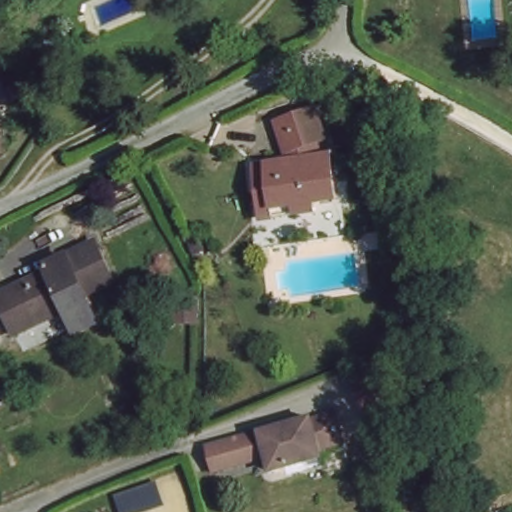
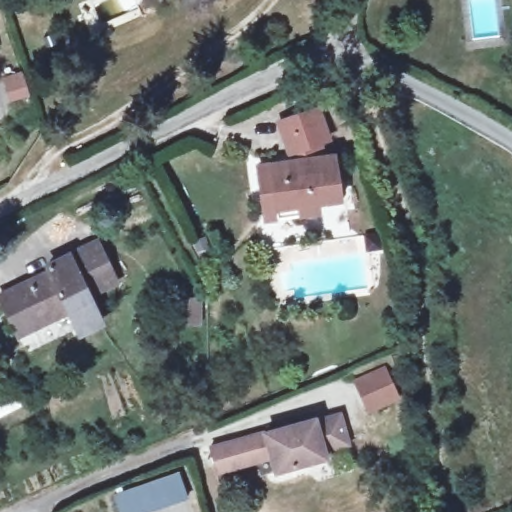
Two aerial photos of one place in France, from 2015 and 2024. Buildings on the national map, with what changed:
unchanged [(260,195),(256,167),(292,163),(284,140),(279,125),(315,113),(326,145),(317,148),(322,160),(333,159),(338,202),(316,205),(317,214),(298,216),(262,220),(260,195)]
unchanged [(65,314),(15,339),(0,310),(0,298),(44,276),(41,270),(92,245),(112,284),(85,297),(99,325),(76,337),(65,314)]
unchanged [(206,296),(206,324),(181,324),(180,295),(206,296)]
new [(384,365),(397,394),(369,406),(356,378),(384,365)]
unchanged [(321,448),(323,454),(273,467),(263,430),(319,414),(334,410),(343,442),(328,446),(321,448)]
unchanged [(208,445),(254,432),(260,455),(214,467),(208,445)]
unchanged [(122,512),(112,488),(159,472),(166,498),(122,512)]

